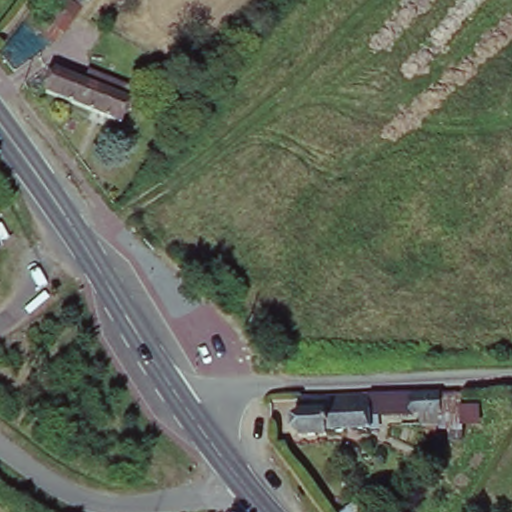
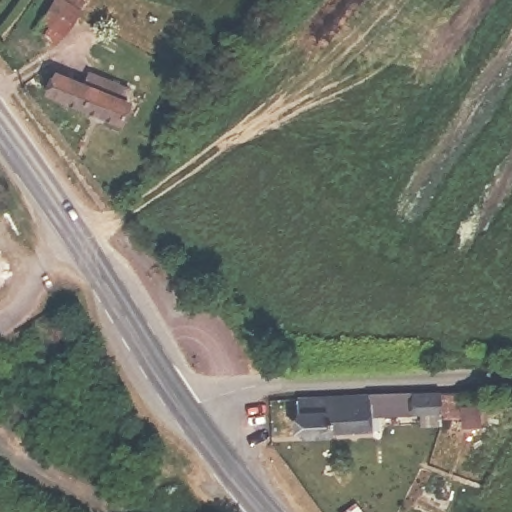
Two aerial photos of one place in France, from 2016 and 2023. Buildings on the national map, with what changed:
unchanged [(50,0),(85,0),(62,34),(38,17),(50,0)]
unchanged [(58,69),(84,81),(89,70),(139,92),(134,102),(126,123),(48,87),(58,69)]
unchanged [(416,386),(455,385),(457,405),(425,408),(426,414),(383,419),(383,424),(339,427),(340,435),(310,437),(308,397),(416,386)]
unchanged [(329,507),(350,492),(364,512),(333,512),(329,507)]

